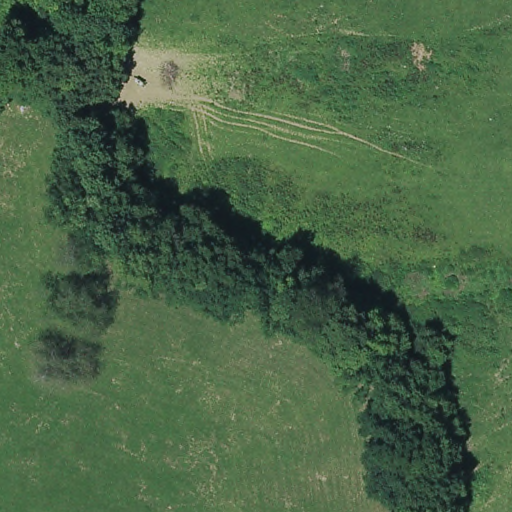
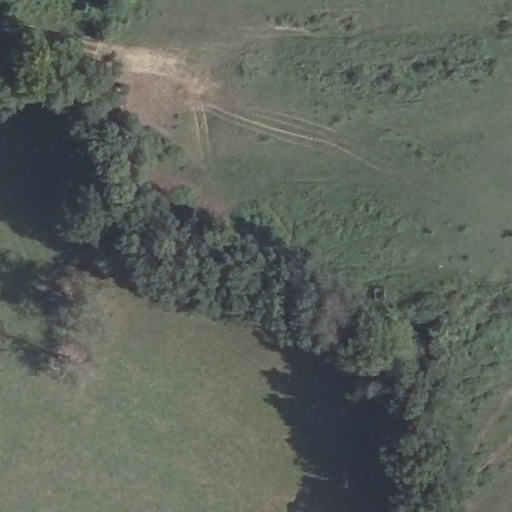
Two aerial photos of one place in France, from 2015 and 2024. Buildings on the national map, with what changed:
[]

